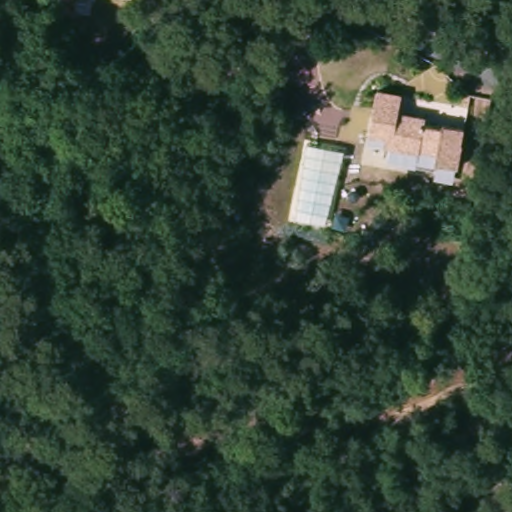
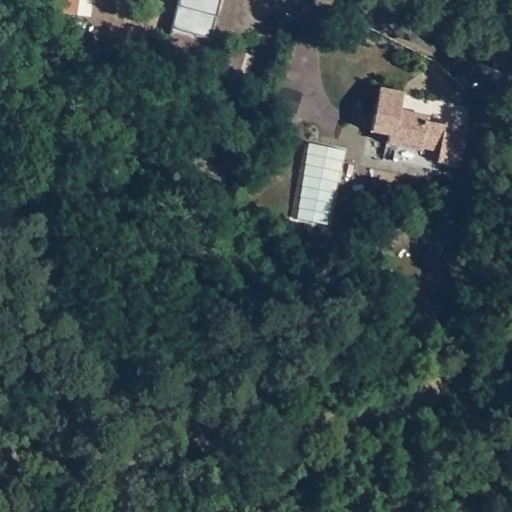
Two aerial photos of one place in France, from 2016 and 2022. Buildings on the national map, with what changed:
unchanged [(74,14),(58,12),(57,0),(76,0),(74,14)]
new [(177,0),(218,0),(208,37),(170,27),(177,0)]
unchanged [(299,94),(293,113),(269,105),(275,86),(299,94)]
unchanged [(369,131),(378,88),(401,92),(398,111),(425,116),(424,122),(441,125),(442,122),(463,126),(460,142),(462,143),(457,166),(448,164),(446,176),(431,172),(432,167),(392,160),(394,149),(389,149),(387,159),(382,158),(387,134),(369,131)]
unchanged [(344,150),(326,225),(296,219),(307,142),(344,150)]

